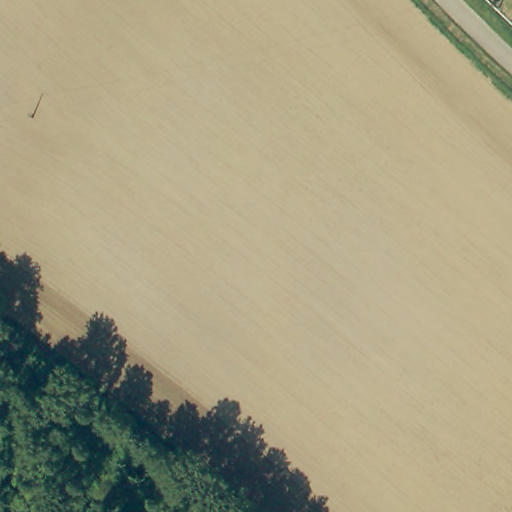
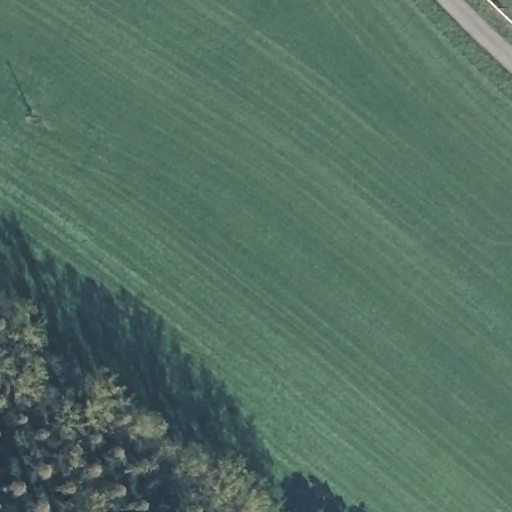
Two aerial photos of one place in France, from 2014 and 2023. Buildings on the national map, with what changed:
[]

